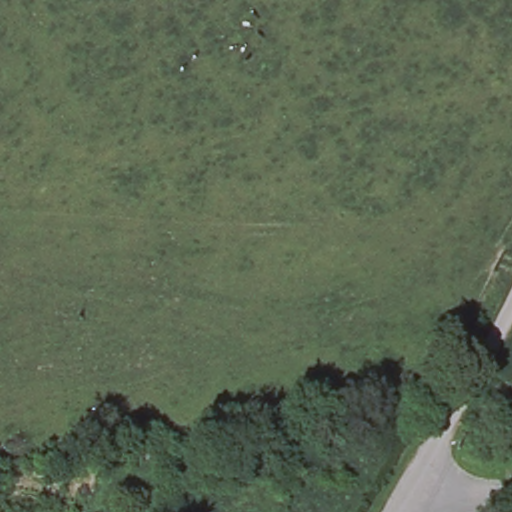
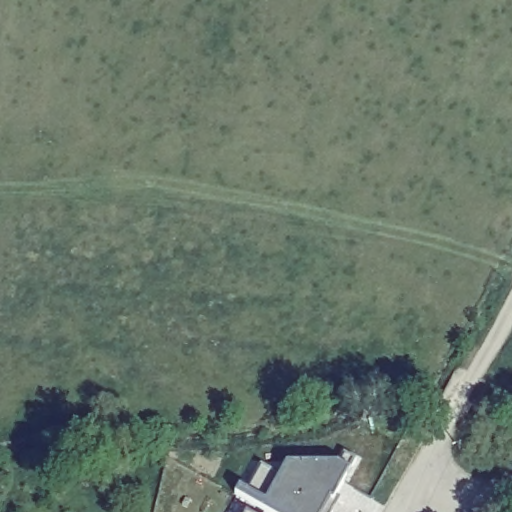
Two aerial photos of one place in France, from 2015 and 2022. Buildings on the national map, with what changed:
new [(334,502),(329,512),(267,512),(236,495),(240,487),(247,490),(261,466),(280,477),(287,463),(337,463),(345,452),(357,459),(350,470),(334,502)]

